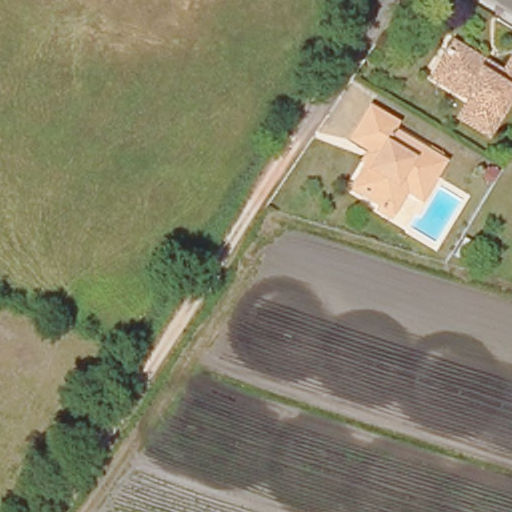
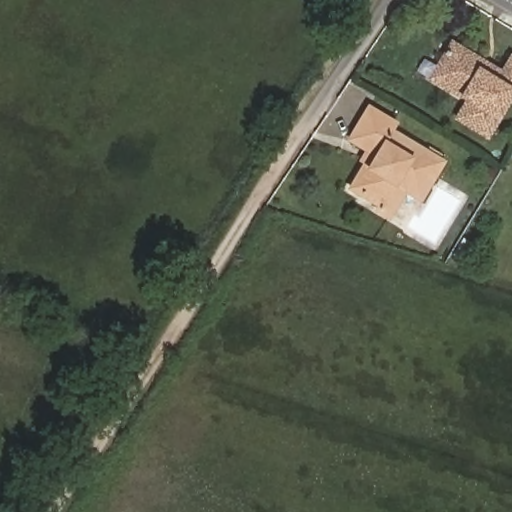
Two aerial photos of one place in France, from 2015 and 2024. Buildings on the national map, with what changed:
unchanged [(494,74),(505,58),(512,63),(512,86),(507,95),(503,93),(495,107),(498,109),(480,138),(450,119),(460,103),(437,88),(422,79),(433,62),(446,43),(477,64),(494,74)]
unchanged [(366,220),(337,201),(353,177),(348,173),(355,164),(337,153),(357,122),(382,138),(378,143),(412,164),(415,160),(427,168),(424,172),(429,175),(405,210),(394,203),(375,231),(364,223),(366,220)]

